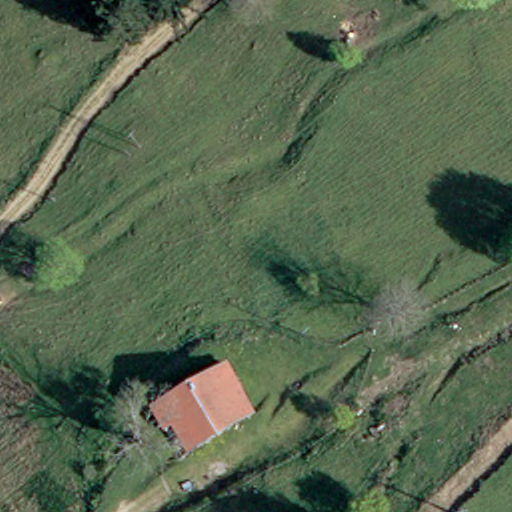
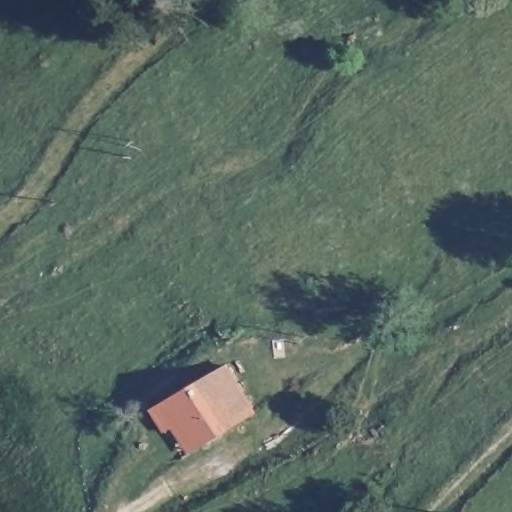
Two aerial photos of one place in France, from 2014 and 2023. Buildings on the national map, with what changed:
unchanged [(260,414),(197,448),(180,421),(162,431),(152,410),(234,367),(260,414)]

